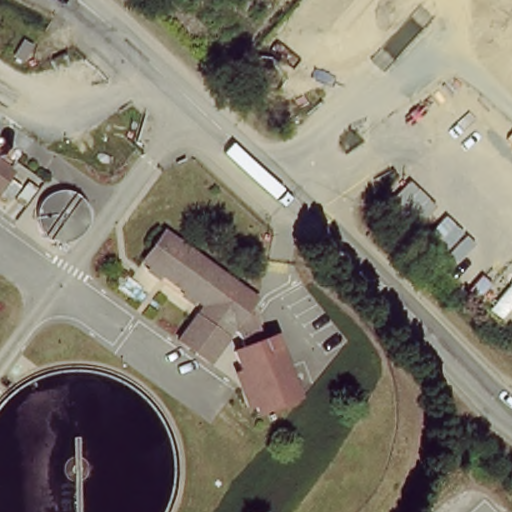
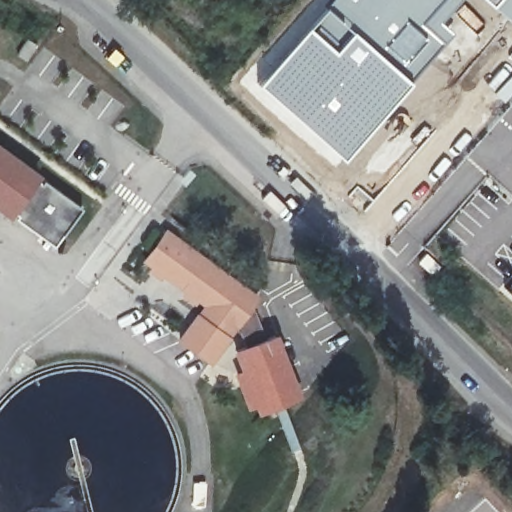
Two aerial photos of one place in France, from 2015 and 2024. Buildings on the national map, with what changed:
new [(326,0),(458,0),(441,20),(453,31),(410,80),(340,157),(256,82),(306,24),(323,4),(326,0)]
new [(512,12),(507,19),(492,6),(485,0),(512,0),(512,12)]
unchanged [(0,190),(0,138),(15,147),(5,161),(13,166),(0,190)]
unchanged [(165,232),(259,299),(254,306),(235,332),(209,369),(177,345),(206,306),(141,262),(165,232)]
unchanged [(259,415),(255,407),(250,409),(236,372),(241,370),(232,350),(240,347),(235,332),(254,306),(266,337),(277,335),(303,398),(259,415)]

